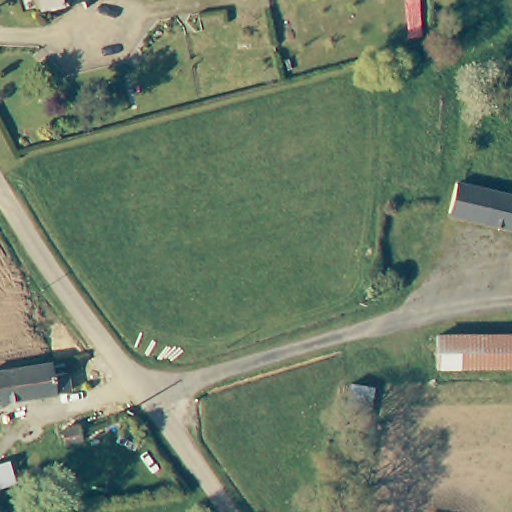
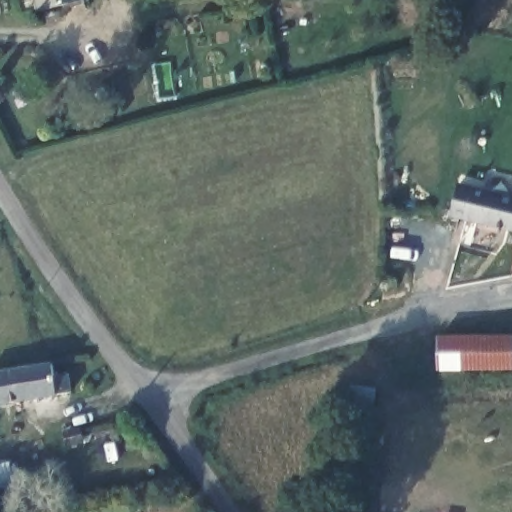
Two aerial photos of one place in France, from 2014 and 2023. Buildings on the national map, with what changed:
unchanged [(42,7),(40,0),(69,0),(42,7)]
unchanged [(451,211),(457,190),(458,182),(512,195),(512,227),(451,211)]
unchanged [(380,279),(382,274),(388,273),(393,275),(396,280),(395,285),(392,288),(386,290),(382,288),(380,286),(380,279)]
unchanged [(512,335),(512,366),(440,368),(438,337),(512,335)]
unchanged [(74,372),(76,391),(0,402),(0,368),(58,357),(60,373),(74,372)]
unchanged [(376,387),(367,447),(341,442),(352,383),(376,387)]
unchanged [(84,438),(65,442),(62,432),(81,426),(84,438)]
unchanged [(15,482),(0,486),(0,465),(9,462),(15,482)]

